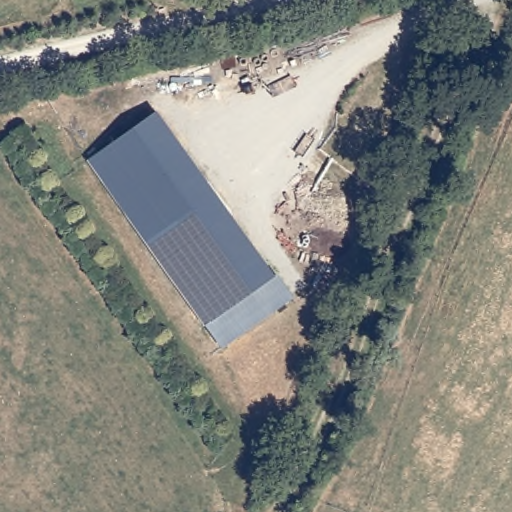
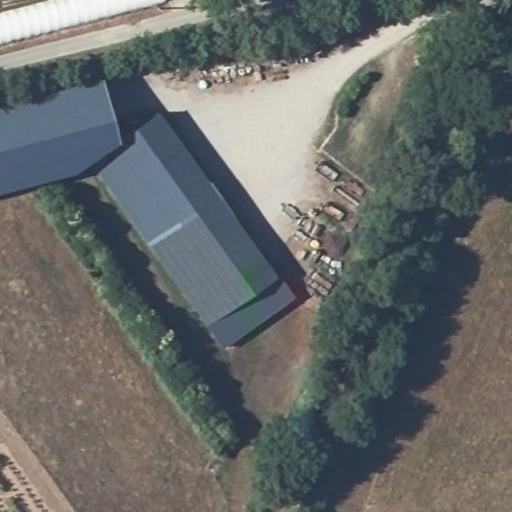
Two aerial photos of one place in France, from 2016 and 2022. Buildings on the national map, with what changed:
new [(115,141),(89,161),(73,172),(0,191),(0,103),(99,78),(115,141)]
unchanged [(228,215),(159,266),(89,161),(157,109),(228,215)]
unchanged [(221,351),(159,266),(228,215),(294,301),(221,351)]

